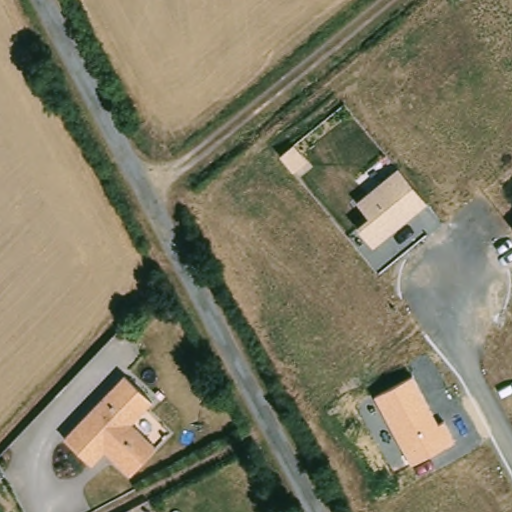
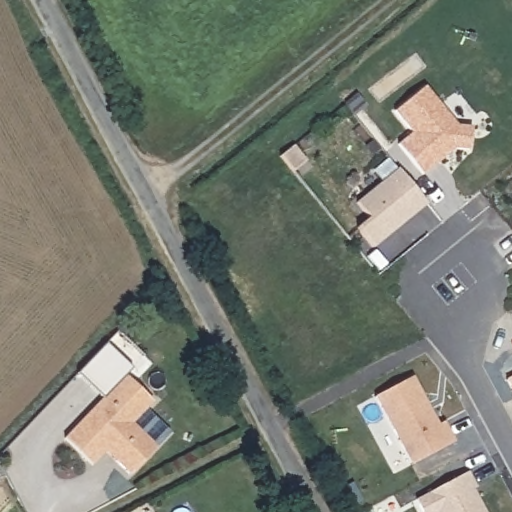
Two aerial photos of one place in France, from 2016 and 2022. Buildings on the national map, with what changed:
new [(457,125),(473,126),(470,150),(455,148),(423,174),(398,145),(412,132),(394,111),(424,85),(457,125)]
unchanged [(368,216),(354,201),(398,166),(428,205),(373,247),(357,227),(368,216)]
unchanged [(148,399),(128,422),(154,444),(129,470),(99,450),(89,461),(59,436),(117,373),(148,399)]
new [(512,375),(512,388),(507,378),(512,375)]
unchanged [(415,378),(440,424),(445,421),(456,441),(412,466),(375,398),(415,378)]
new [(477,488),(474,490),(485,512),(439,512),(439,511),(438,512),(423,512),(415,498),(468,471),(477,488)]

